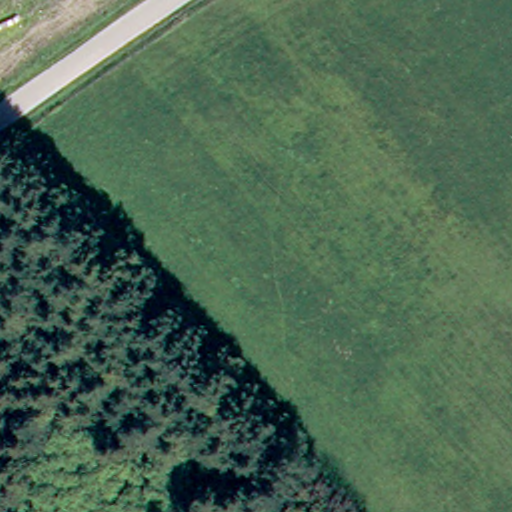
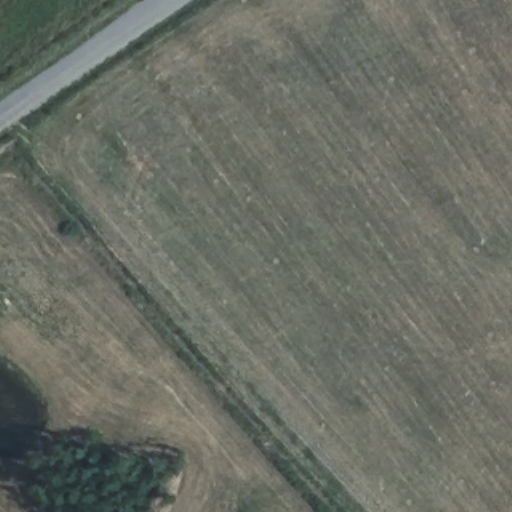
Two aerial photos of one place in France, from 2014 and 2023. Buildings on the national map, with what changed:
[]

